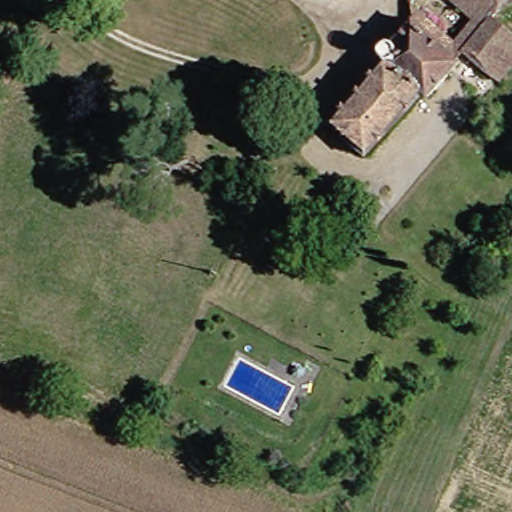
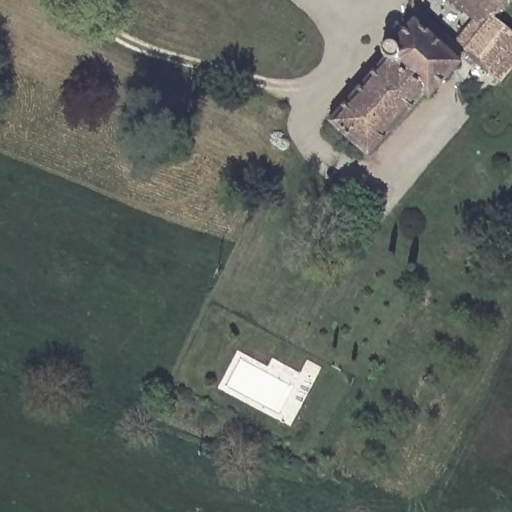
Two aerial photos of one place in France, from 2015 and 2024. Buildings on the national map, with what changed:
unchanged [(512,29),(512,66),(501,81),(466,55),(486,30),(451,0),(512,0),(512,1),(500,20),(512,29)]
unchanged [(459,62),(427,103),(420,98),(370,157),(333,127),(383,65),(380,59),(388,47),(396,52),(417,29),(459,62)]

